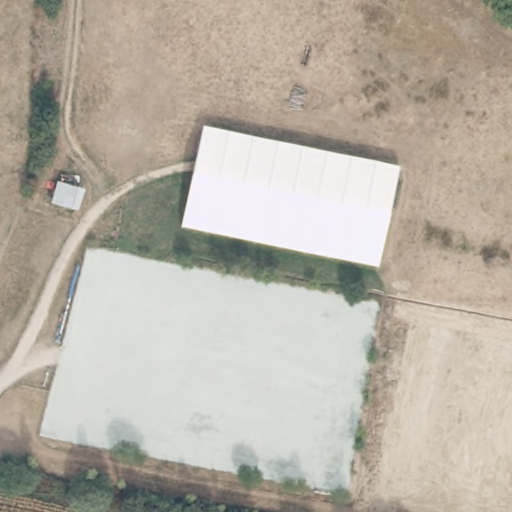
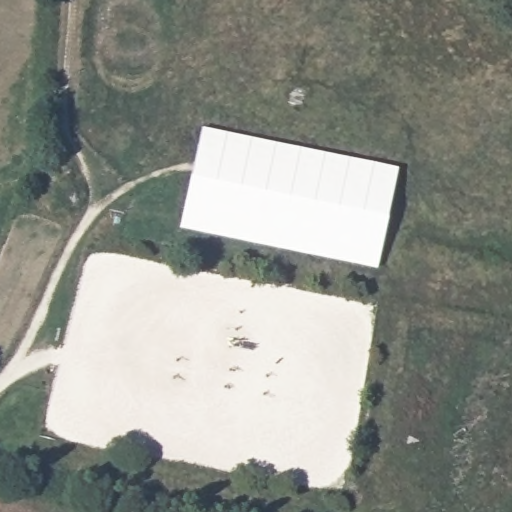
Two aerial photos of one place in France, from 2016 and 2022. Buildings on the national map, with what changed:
unchanged [(399,168),(378,271),(179,230),(202,128),(399,168)]

